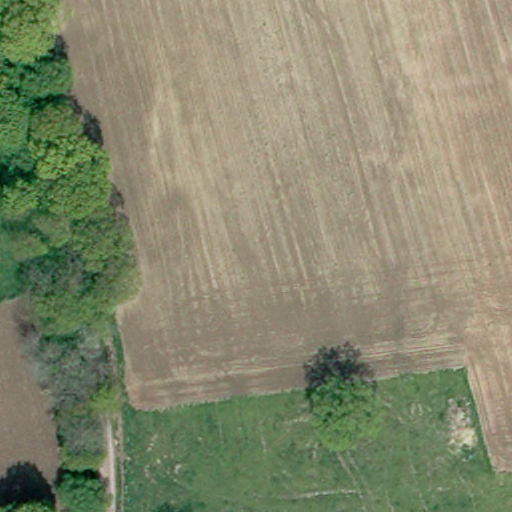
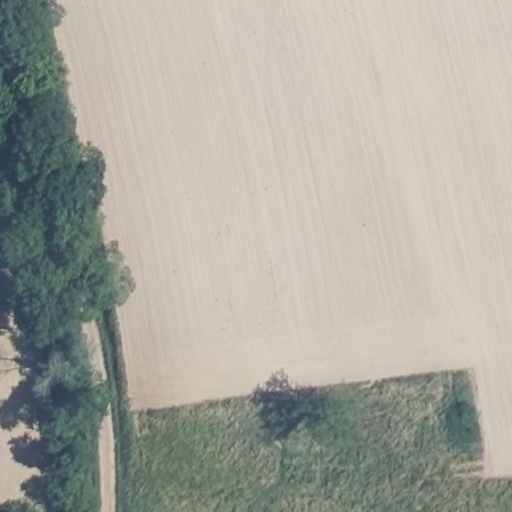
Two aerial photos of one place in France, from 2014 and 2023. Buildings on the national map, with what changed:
[]

